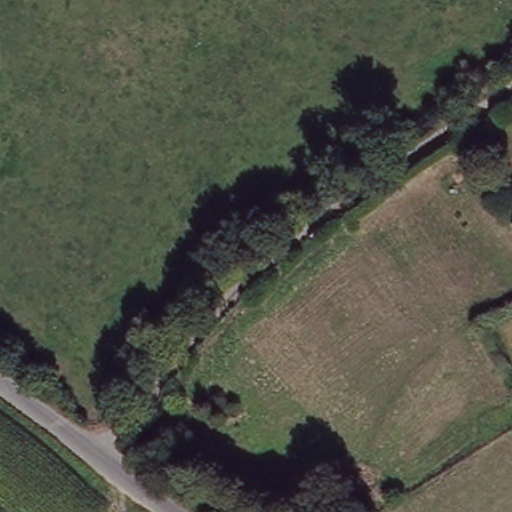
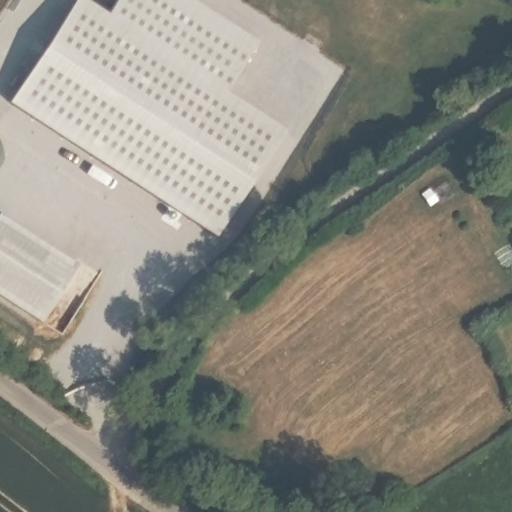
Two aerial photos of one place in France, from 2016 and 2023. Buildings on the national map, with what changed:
new [(107,21),(121,0),(186,0),(257,46),(227,98),(284,135),(218,244),(8,111),(78,3),(107,21)]
new [(42,330),(0,303),(0,223),(79,273),(42,330)]

